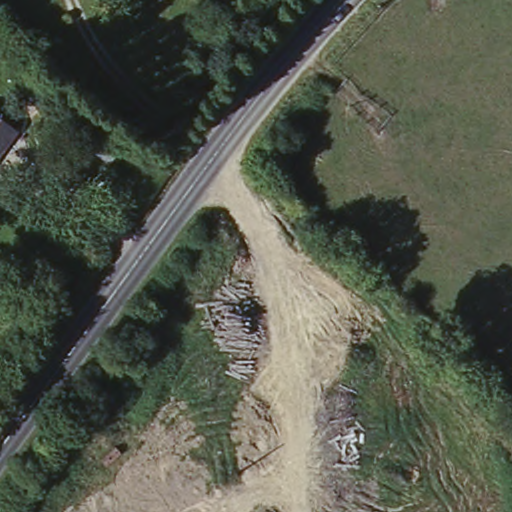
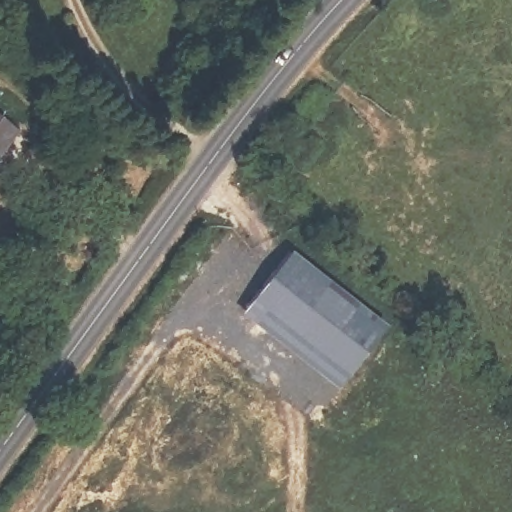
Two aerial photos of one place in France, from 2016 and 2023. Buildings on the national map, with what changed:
unchanged [(0,158),(0,116),(19,126),(0,158)]
new [(291,256),(387,330),(343,382),(247,309),(291,256)]

